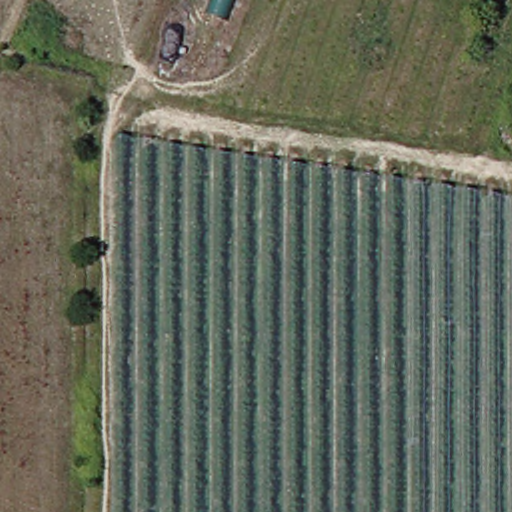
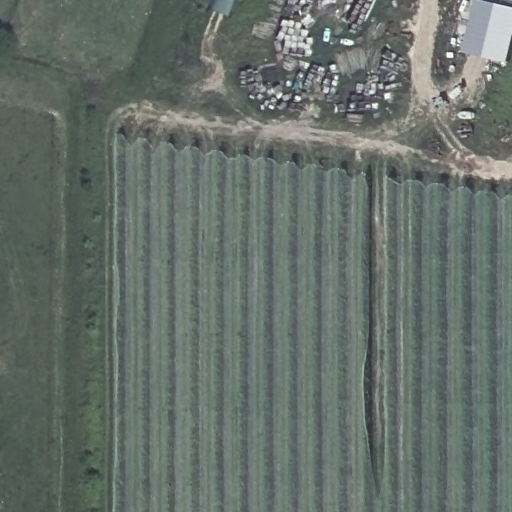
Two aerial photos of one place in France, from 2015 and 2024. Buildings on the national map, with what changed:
unchanged [(175,75),(205,0),(228,0),(197,83),(175,75)]
new [(466,53),(479,0),(481,0),(512,8),(512,57),(511,64),(466,53)]

